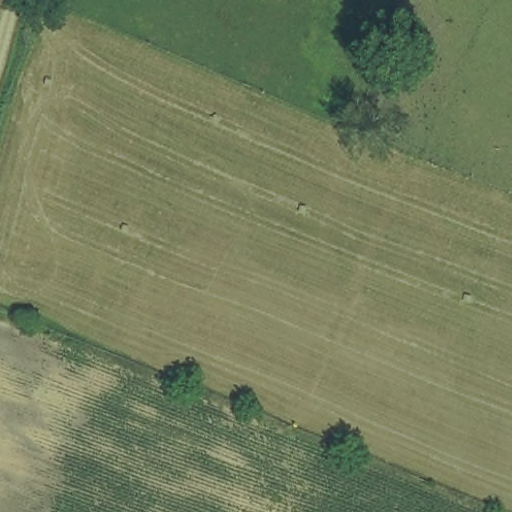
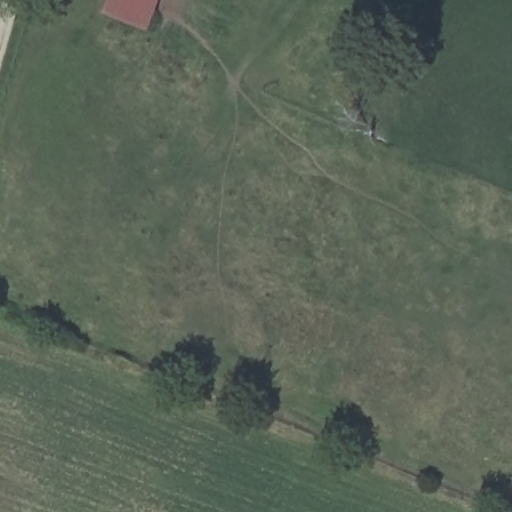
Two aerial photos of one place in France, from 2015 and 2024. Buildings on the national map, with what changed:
new [(105,16),(111,0),(162,0),(150,32),(105,16)]

